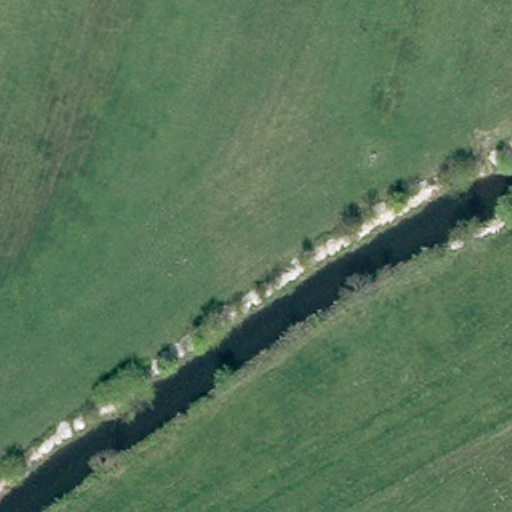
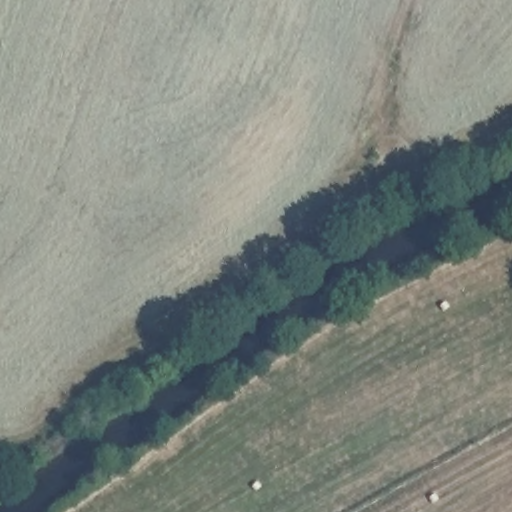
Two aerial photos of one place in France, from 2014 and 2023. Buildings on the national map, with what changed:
[]

